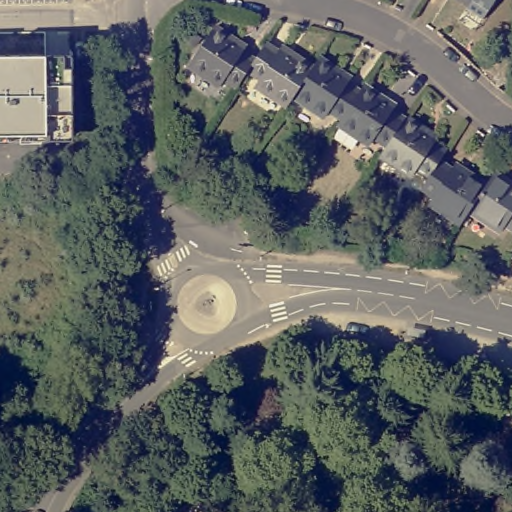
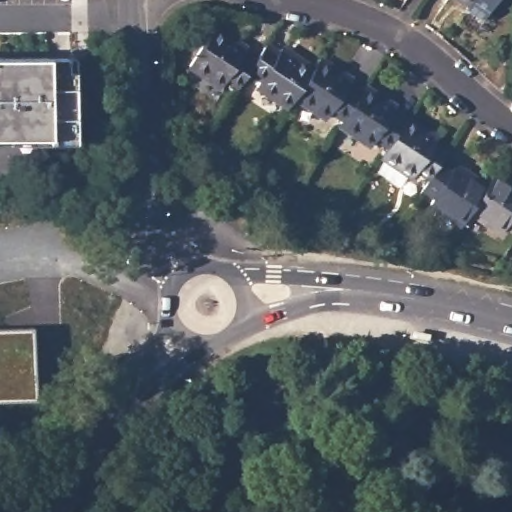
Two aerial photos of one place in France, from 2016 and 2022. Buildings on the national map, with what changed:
unchanged [(468,8),(456,0),(474,0),(468,8)]
unchanged [(231,75),(226,82),(195,62),(220,24),(251,45),(248,49),(260,57),(255,66),(243,83),(231,75)]
unchanged [(282,48),(285,43),(317,64),(299,93),(293,102),(261,81),(266,73),(255,66),(260,57),(270,41),(282,48)]
unchanged [(356,76),(353,81),(365,89),(349,114),(337,106),(331,114),(299,93),(317,64),(325,54),(356,76)]
unchanged [(70,57),(71,141),(45,141),(44,136),(0,136),(0,57),(45,56),(70,57)]
unchanged [(380,134),(375,141),(344,121),(349,114),(365,89),(369,83),(400,104),(397,108),(410,117),(393,142),(380,134)]
unchanged [(422,165),(418,172),(387,152),(393,142),(410,117),(411,114),(441,135),(439,140),(451,148),(445,159),(435,173),(422,165)]
unchanged [(435,198),(439,192),(427,184),(435,173),(445,159),(456,166),(459,161),(491,182),(475,207),(466,220),(435,198)]
unchanged [(511,219),(506,228),(475,207),(491,182),(500,170),(512,178),(512,220),(511,219)]
unchanged [(233,207),(245,192),(261,204),(249,219),(233,207)]
new [(36,400),(0,402),(0,329),(32,328),(36,400)]

